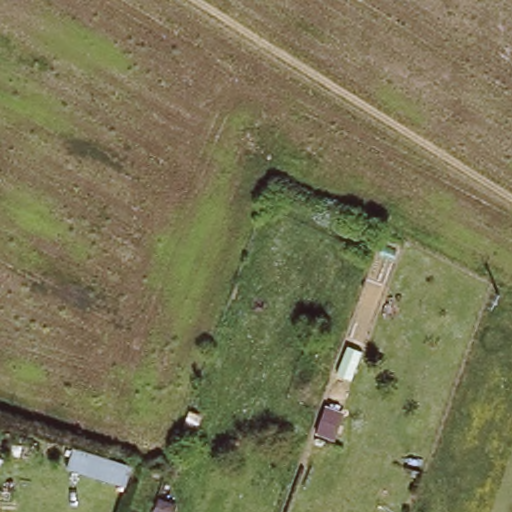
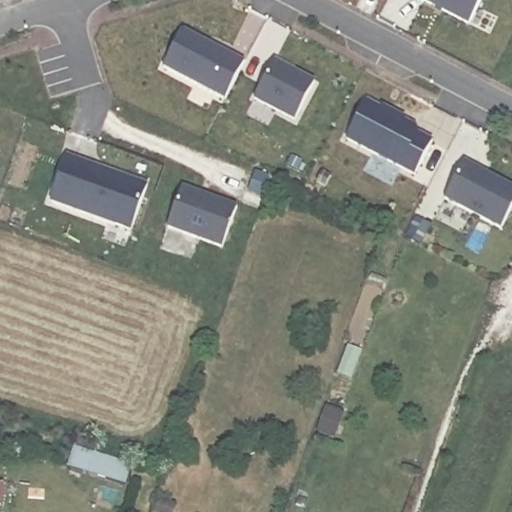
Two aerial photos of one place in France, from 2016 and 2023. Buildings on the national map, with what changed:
new [(469,26),(419,0),(482,0),(469,26)]
new [(185,32),(244,64),(225,101),(166,69),(185,32)]
new [(276,61),(315,80),(296,120),(257,100),(276,61)]
new [(368,101),(380,106),(383,105),(405,117),(406,120),(416,125),(420,134),(433,140),(414,175),(347,140),(368,101)]
new [(69,156),(148,185),(131,231),(52,203),(69,156)]
new [(466,162),(512,186),(512,207),(501,230),(447,200),(466,162)]
new [(183,186),(237,205),(223,249),(169,228),(183,186)]
new [(75,450),(133,469),(126,488),(69,469),(75,450)]

